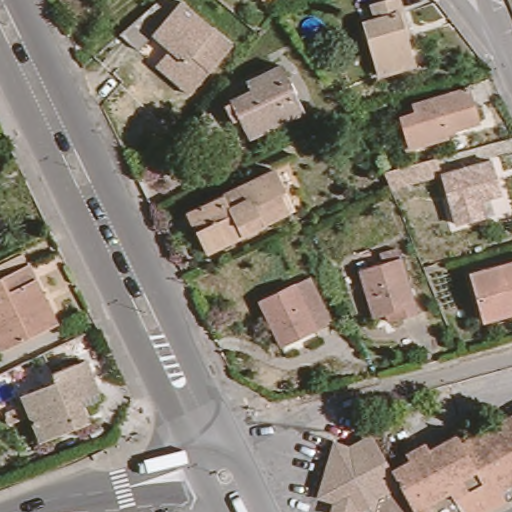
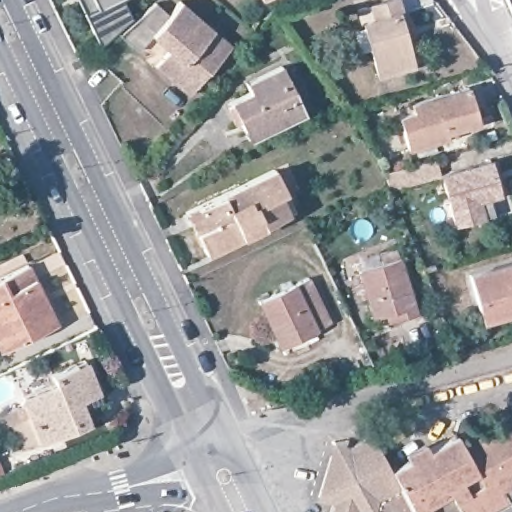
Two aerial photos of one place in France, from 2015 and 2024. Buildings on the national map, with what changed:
new [(100,45),(79,0),(122,0),(131,17),(100,45)]
unchanged [(383,74),(367,22),(376,19),(373,6),(392,0),(401,0),(410,28),(406,30),(416,63),(383,74)]
unchanged [(181,89),(156,67),(169,51),(152,36),(138,52),(119,36),(157,3),(170,14),(180,1),(231,44),(207,73),(188,94),(181,89)]
unchanged [(244,129),(233,107),(253,98),(248,85),(283,69),(304,115),(283,125),(249,140),(244,129)]
unchanged [(442,136),(406,147),(394,112),(412,107),(409,99),(463,85),(474,120),(463,124),(464,130),(442,136)]
unchanged [(452,223),(438,174),(488,161),(498,197),(489,199),(492,213),(481,216),(452,223)]
unchanged [(381,176),(431,163),(435,178),(389,192),(381,176)]
unchanged [(272,171),(281,191),(289,210),(284,213),(199,253),(182,214),(272,171)]
unchanged [(354,271),(394,257),(413,309),(396,315),(372,323),(369,315),(354,271)]
unchanged [(481,319),(468,274),(512,263),(512,311),(481,319)]
unchanged [(0,352),(0,279),(28,266),(42,299),(55,328),(48,331),(0,352)]
unchanged [(256,301),(303,277),(326,321),(279,344),(256,301)]
unchanged [(28,416),(8,424),(2,410),(23,402),(20,394),(53,381),(48,371),(83,357),(99,396),(81,404),(88,420),(38,439),(28,416)]
unchanged [(372,510),(355,504),(352,512),(327,512),(331,497),(316,492),(328,455),(334,439),(349,444),(373,431),(392,468),(398,465),(457,432),(462,442),(503,419),(512,415),(512,496),(509,497),(482,512),(373,512),(372,510)]

